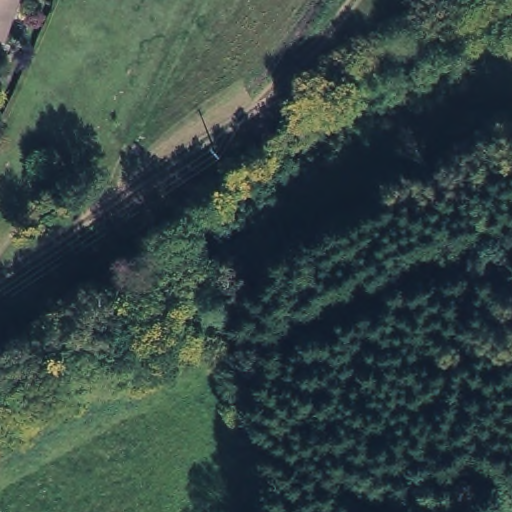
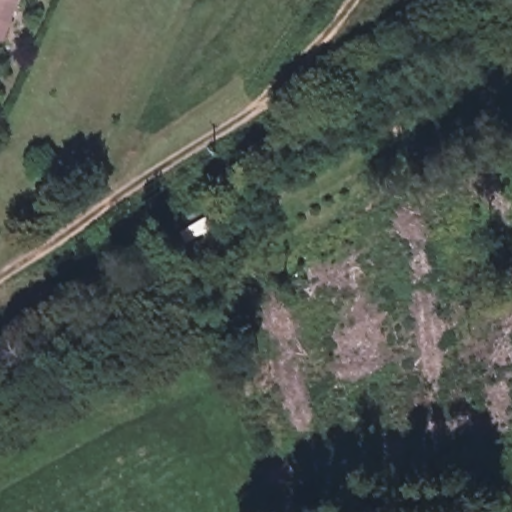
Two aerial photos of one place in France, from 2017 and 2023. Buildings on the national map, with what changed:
unchanged [(0,39),(0,0),(15,0),(2,39),(0,39)]

